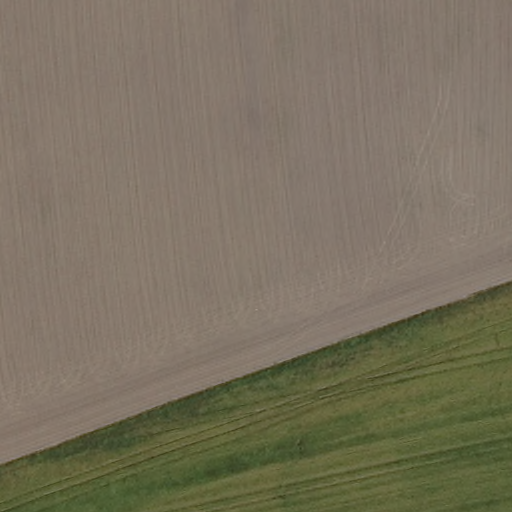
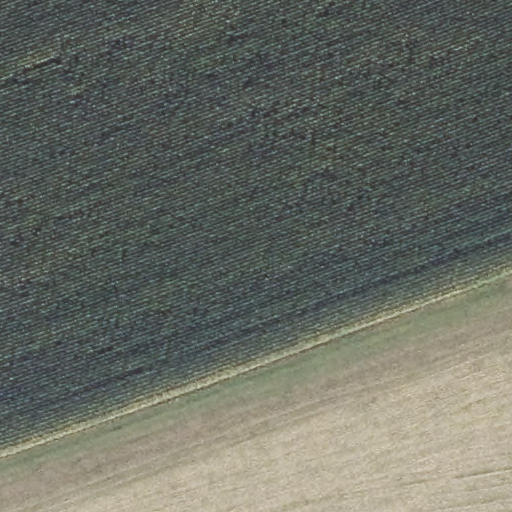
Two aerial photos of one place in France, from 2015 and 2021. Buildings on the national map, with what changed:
[]

